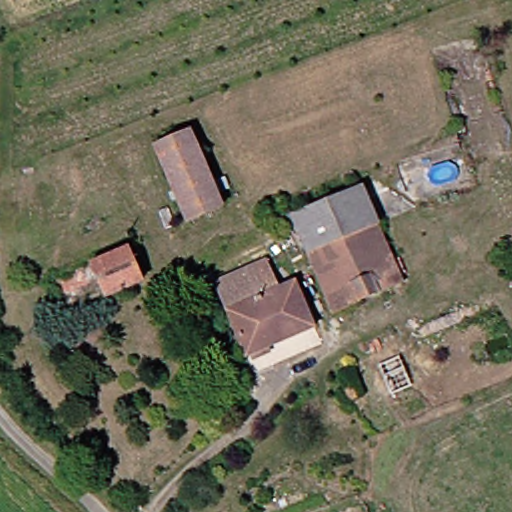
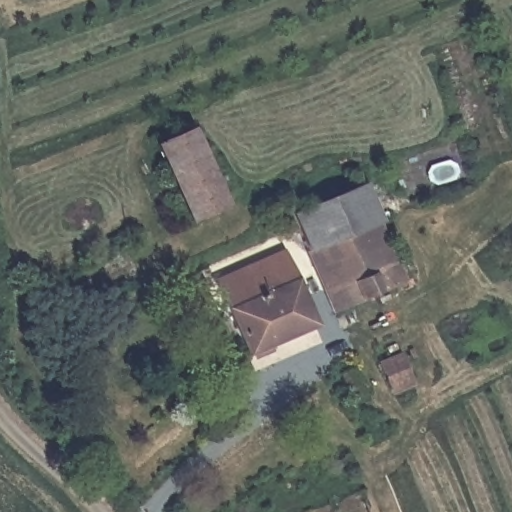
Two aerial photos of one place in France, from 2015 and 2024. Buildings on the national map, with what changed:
unchanged [(197,227),(161,153),(194,137),(229,212),(197,227)]
unchanged [(410,281),(338,316),(328,295),(332,293),(302,230),(288,236),(281,220),(294,214),(296,217),(363,184),(410,281)]
unchanged [(74,313),(60,280),(134,246),(147,278),(74,313)]
unchanged [(298,280),(318,327),(249,356),(217,282),(271,258),(282,286),(298,280)]
unchanged [(352,421),(342,396),(353,391),(365,415),(352,421)]

